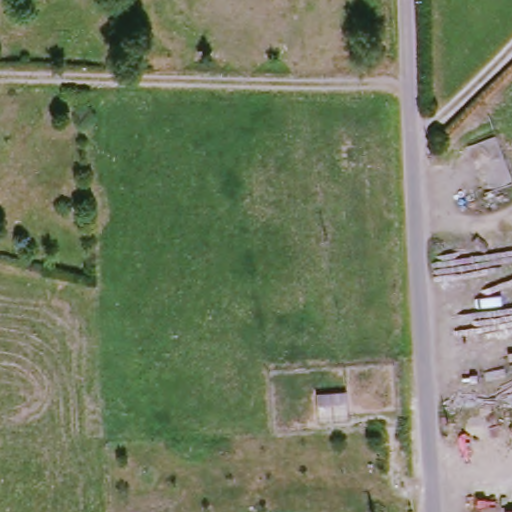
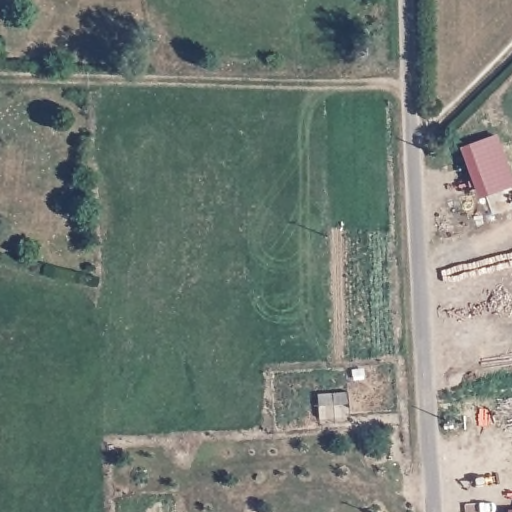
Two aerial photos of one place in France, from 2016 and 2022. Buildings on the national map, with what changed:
new [(479,197),(460,147),(497,135),(512,178),(512,186),(479,197)]

